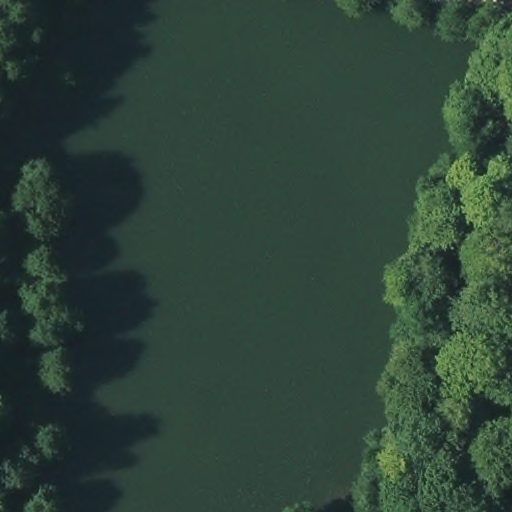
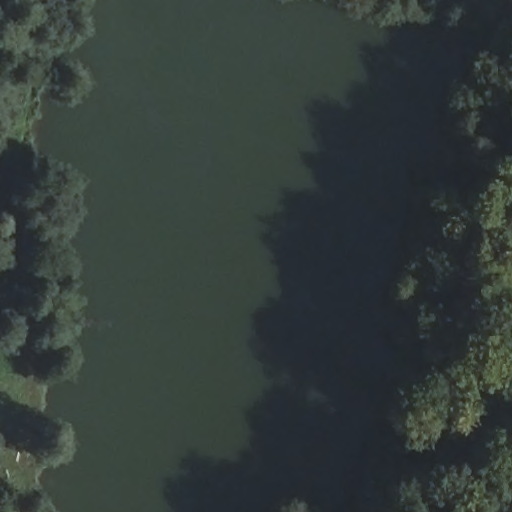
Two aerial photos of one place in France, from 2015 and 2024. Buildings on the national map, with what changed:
unchanged [(22,107),(5,104),(10,88),(27,92),(22,107)]

